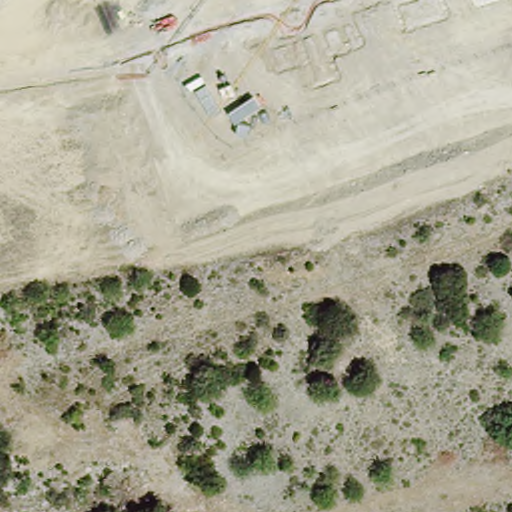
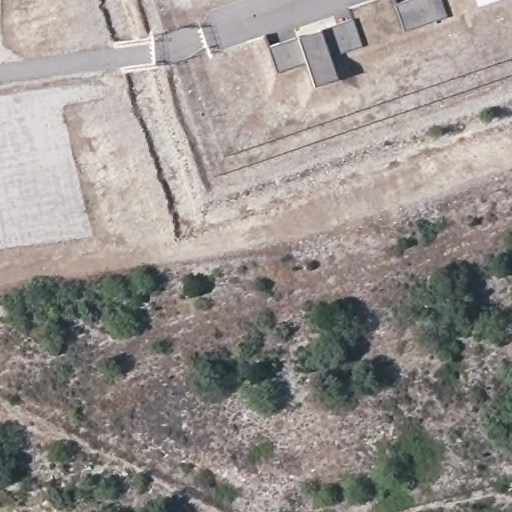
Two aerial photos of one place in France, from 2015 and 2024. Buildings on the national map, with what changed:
new [(446,15),(402,30),(393,4),(404,0),(441,0),(446,15)]
new [(478,6),(475,0),(494,0),(478,6)]
new [(359,44),(328,53),(336,77),(312,85),(304,60),(275,71),(266,45),(351,16),(359,44)]

